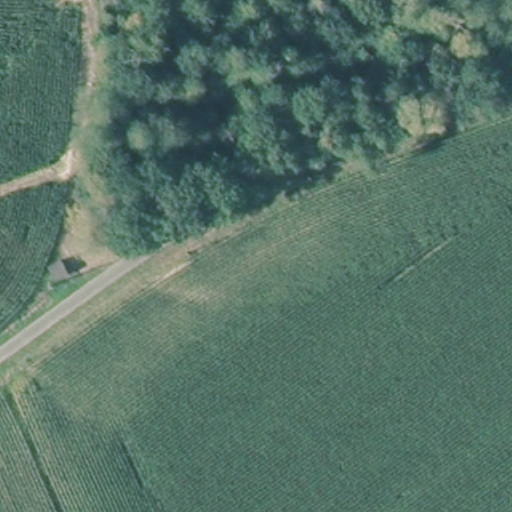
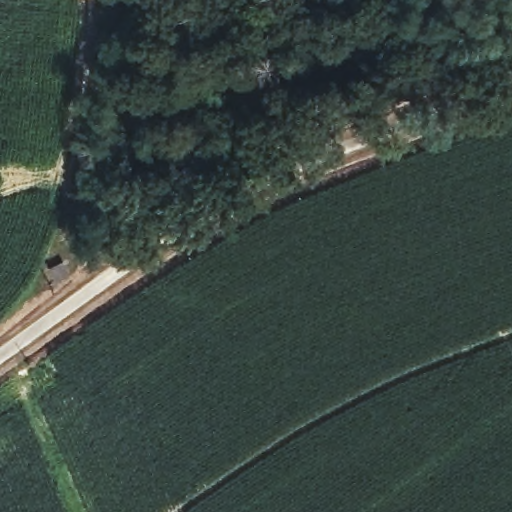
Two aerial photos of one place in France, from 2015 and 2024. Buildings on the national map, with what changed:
unchanged [(76,263),(65,272),(59,263),(70,253),(76,263)]

